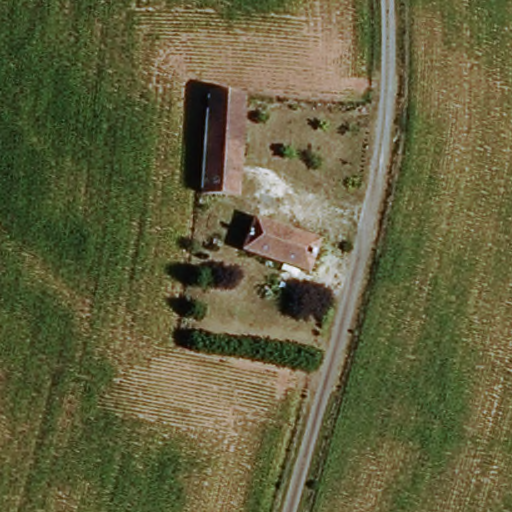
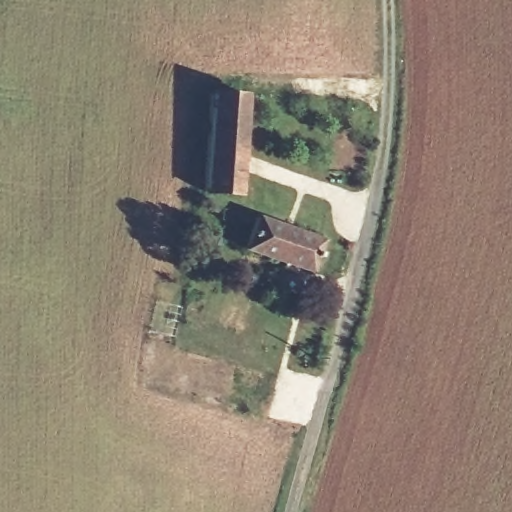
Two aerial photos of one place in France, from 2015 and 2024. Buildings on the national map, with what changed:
unchanged [(204,190),(210,92),(247,95),(240,194),(204,190)]
unchanged [(256,216),(323,240),(312,272),(245,248),(256,216)]

